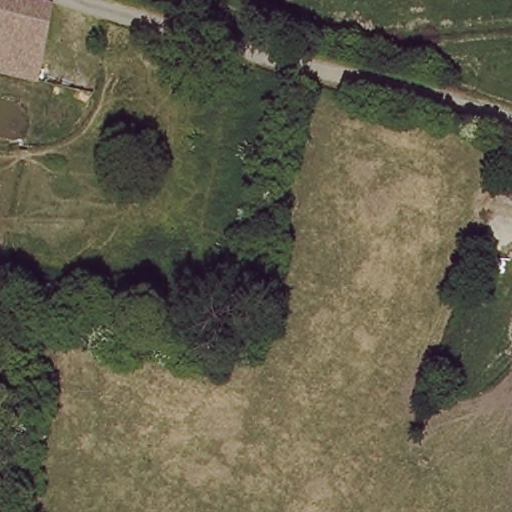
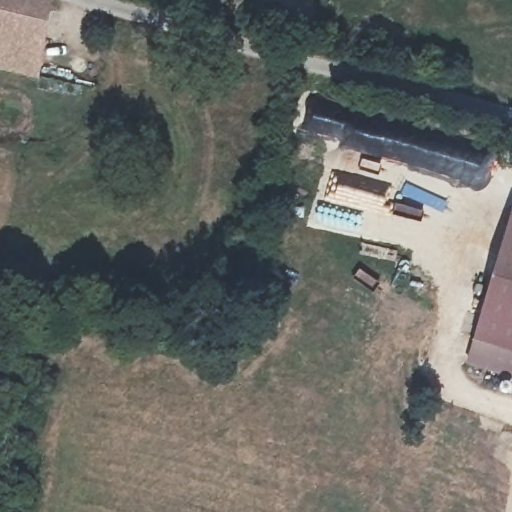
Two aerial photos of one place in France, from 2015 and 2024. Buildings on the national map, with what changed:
unchanged [(50,2),(29,69),(0,62),(0,0),(45,0),(50,2)]
new [(512,209),(512,376),(466,362),(512,209)]

